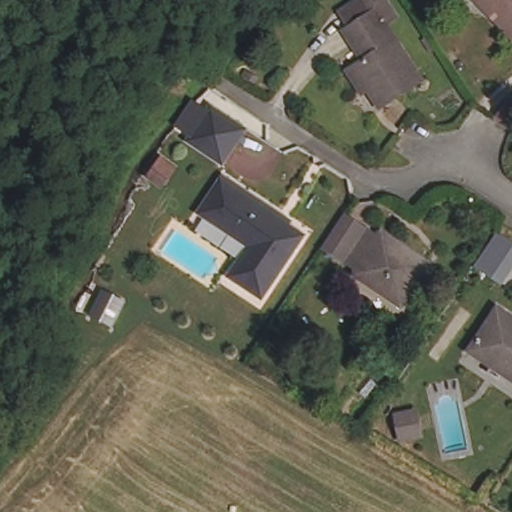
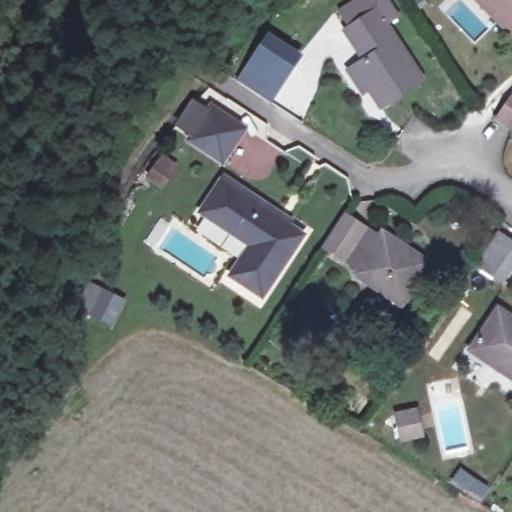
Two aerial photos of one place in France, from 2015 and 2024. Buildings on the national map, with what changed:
unchanged [(349,74),(357,70),(355,67),(364,61),(355,46),(346,29),(353,25),(345,9),(360,0),(389,0),(399,18),(389,25),(420,85),(377,109),(368,91),(360,96),(349,74)]
unchanged [(477,13),(464,0),(512,0),(512,49),(477,13)]
new [(237,79),(245,68),(255,51),(267,32),(302,54),(290,73),(279,90),(272,101),(237,79)]
unchanged [(512,105),(512,119),(503,132),(488,122),(504,99),(512,105)]
unchanged [(242,131),(223,162),(188,141),(208,110),(242,131)]
unchanged [(170,165),(158,184),(147,177),(159,158),(170,165)]
unchanged [(259,299),(229,279),(248,249),(197,215),(218,183),(222,185),(227,177),(290,219),(285,228),(300,237),(259,299)]
unchanged [(383,235),(427,263),(402,303),(357,274),(360,271),(345,261),(325,248),(345,217),(365,230),(380,239),(383,235)]
unchanged [(498,234),(512,243),(512,265),(500,283),(476,267),(490,245),(498,234)]
unchanged [(512,323),(512,380),(473,355),(498,314),(512,323)]
unchanged [(419,434),(399,439),(394,416),(413,411),(419,434)]

